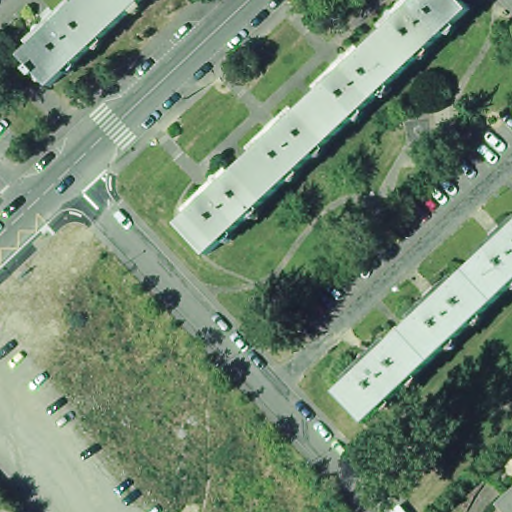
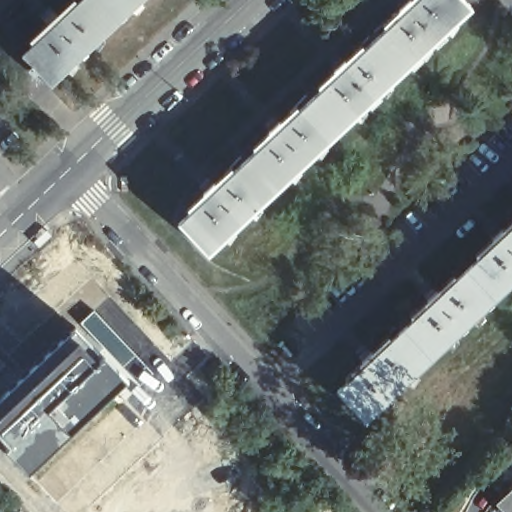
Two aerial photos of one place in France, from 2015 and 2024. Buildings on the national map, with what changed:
unchanged [(117,24),(52,86),(38,71),(35,75),(28,68),(32,65),(22,54),(50,28),(47,24),(57,15),(60,19),(81,0),(95,0),(117,24)]
unchanged [(117,24),(95,0),(143,0),(117,24)]
unchanged [(403,17),(400,14),(410,5),(413,8),(422,0),(458,0),(471,13),(405,75),(376,43),(403,17)]
unchanged [(340,136),(310,104),(338,78),(335,75),(345,66),(348,70),(376,43),(405,75),(340,136)]
unchanged [(275,197),(245,166),(273,140),(270,136),(280,127),(283,131),(310,104),(340,136),(275,197)]
unchanged [(208,259),(180,227),(208,201),(205,197),(214,188),(217,192),(245,166),(275,197),(208,259)]
unchanged [(462,272),(490,246),(487,243),(497,234),(500,237),(512,226),(512,285),(492,304),(462,272)]
unchanged [(427,365),(397,333),(425,307),(422,304),(431,295),(435,298),(462,272),(492,304),(427,365)]
new [(95,308),(137,355),(123,368),(78,324),(95,308)]
new [(78,324),(123,368),(132,378),(28,474),(0,442),(0,396),(78,324)]
unchanged [(360,426),(332,395),(360,368),(357,365),(366,356),(370,359),(397,333),(427,365),(360,426)]
unchanged [(512,462),(512,501),(511,501),(492,480),(512,462)]
unchanged [(511,501),(512,501),(512,512),(507,512),(503,508),(511,501)]

